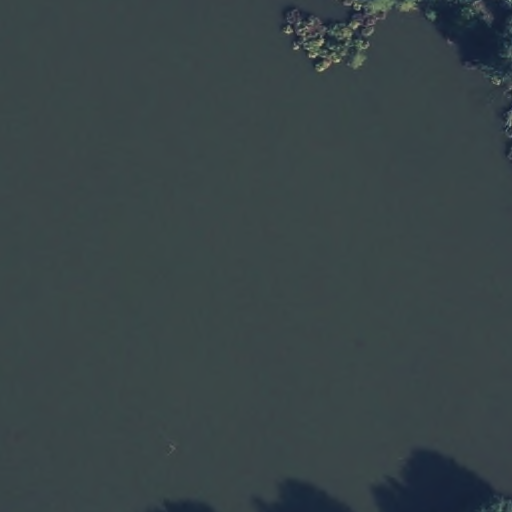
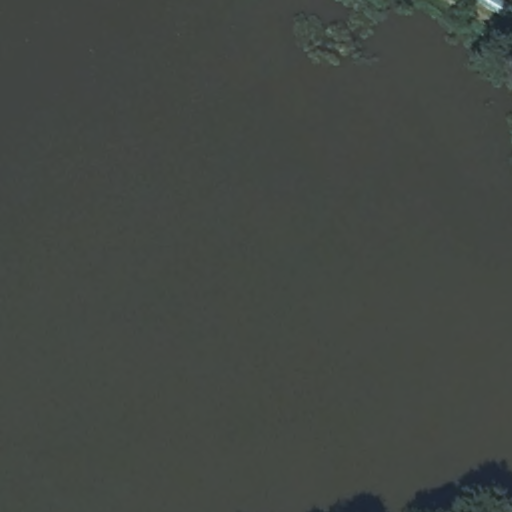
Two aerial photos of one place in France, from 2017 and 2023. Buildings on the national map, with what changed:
[]

